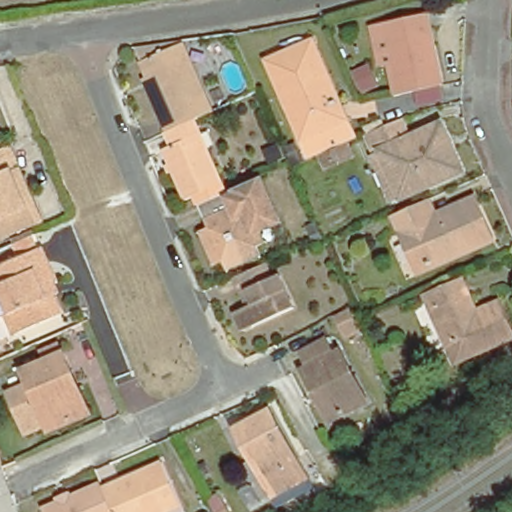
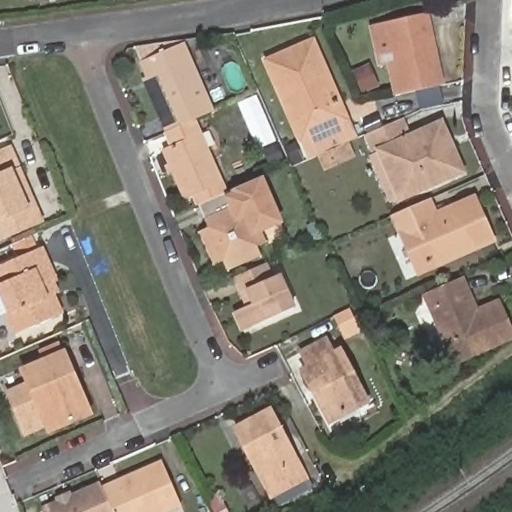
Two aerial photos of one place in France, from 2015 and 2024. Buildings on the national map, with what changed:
unchanged [(400,95),(384,21),(427,12),(443,86),(400,95)]
unchanged [(290,114),(262,51),(306,32),(340,110),(349,132),(336,138),(317,146),(307,151),(297,129),(290,114)]
unchanged [(150,79),(154,77),(149,65),(190,46),(218,112),(202,119),(172,131),(166,117),(164,114),(150,79)]
unchanged [(199,195),(190,200),(170,150),(177,146),(170,132),(172,131),(202,119),(229,184),(232,192),(203,205),(199,195)]
unchanged [(373,151),(378,149),(372,134),(400,121),(403,120),(411,135),(441,122),(462,171),(401,199),(396,202),(373,151)]
unchanged [(1,221),(0,221),(0,154),(20,145),(29,166),(39,190),(50,217),(7,236),(1,221)]
unchanged [(230,268),(227,263),(222,265),(216,268),(202,235),(209,231),(214,230),(203,205),(232,192),(262,180),(282,226),(268,232),(273,245),(267,247),(262,250),(263,254),(265,258),(232,272),(230,268)]
unchanged [(430,202),(437,220),(476,204),(492,240),(419,271),(396,217),(430,202)]
unchanged [(56,282),(54,283),(59,295),(54,297),(62,316),(15,335),(7,315),(0,318),(0,266),(42,248),(56,282)]
unchanged [(244,308),(251,305),(252,305),(249,295),(241,276),(270,263),(276,277),(286,273),(301,306),(258,324),(251,327),(244,308)]
unchanged [(463,275),(478,309),(500,300),(512,329),(512,338),(476,354),(468,338),(451,346),(427,291),(463,275)]
unchanged [(309,395),(301,375),(308,371),(301,355),(326,345),(333,360),(340,358),(362,409),(330,424),(323,427),(309,395)]
unchanged [(85,413),(49,428),(47,423),(30,381),(25,370),(66,352),(76,375),(91,411),(85,413)]
unchanged [(47,423),(26,431),(9,390),(30,381),(47,423)]
unchanged [(288,482),(271,491),(263,477),(239,428),(273,411),(298,460),(306,473),(288,482)]
unchanged [(107,492),(165,466),(185,509),(178,512),(115,512),(107,492)]
unchanged [(107,492),(115,512),(47,512),(105,487),(107,492)]

